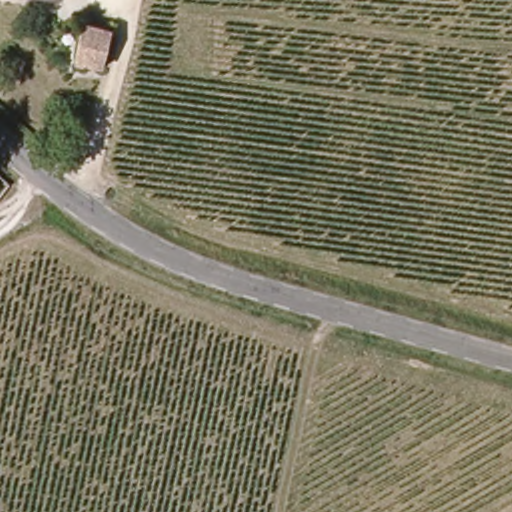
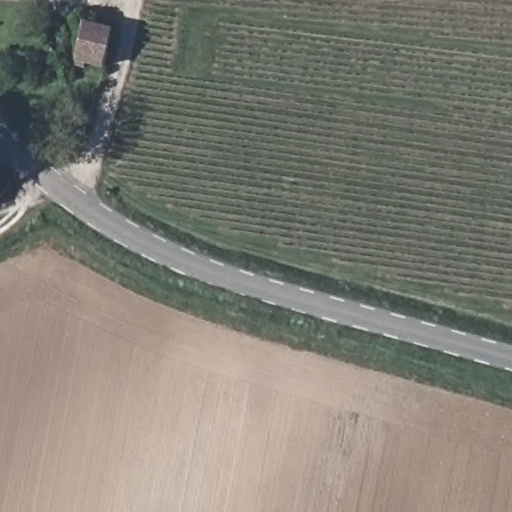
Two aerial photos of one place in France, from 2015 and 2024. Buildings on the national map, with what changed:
unchanged [(55,0),(67,0),(67,1),(55,0)]
unchanged [(83,25),(110,30),(104,63),(78,58),(83,25)]

